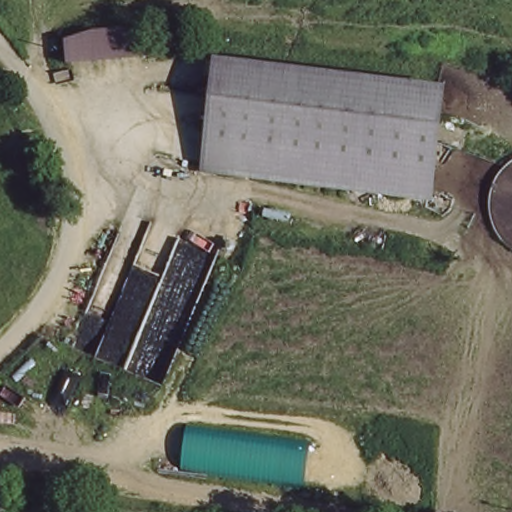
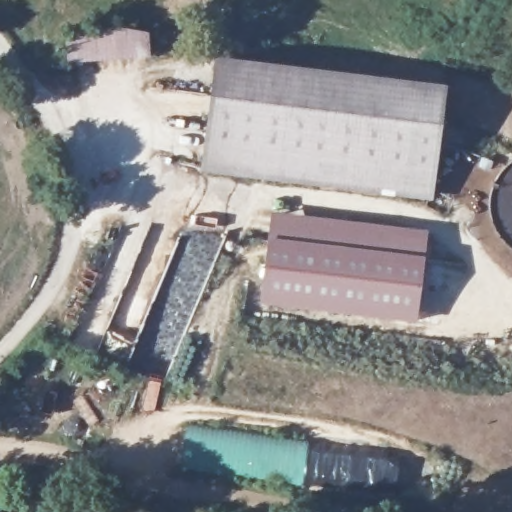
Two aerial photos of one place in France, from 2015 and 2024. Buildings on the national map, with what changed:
unchanged [(67,45),(74,39),(115,32),(143,42),(145,64),(68,69),(67,45)]
unchanged [(440,91),(428,198),(202,169),(215,63),(440,91)]
new [(415,322),(260,302),(271,210),(427,230),(415,322)]
new [(185,423),(309,441),(303,487),(180,471),(185,423)]

